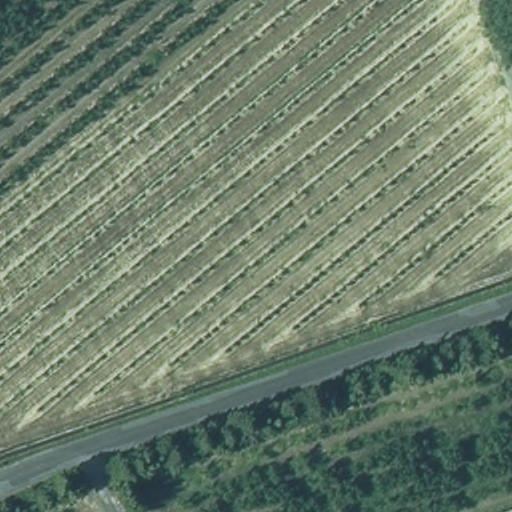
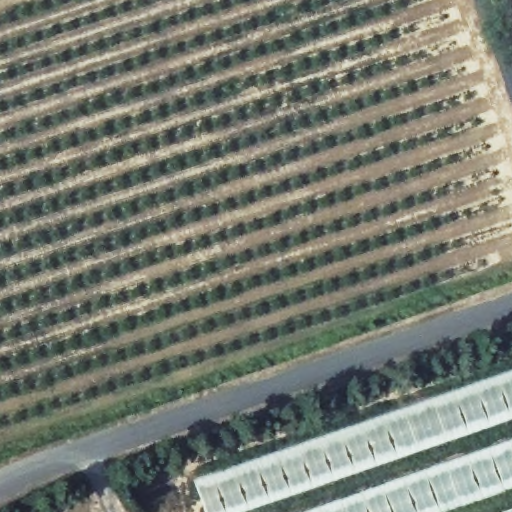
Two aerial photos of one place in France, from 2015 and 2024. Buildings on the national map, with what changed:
new [(205,512),(196,482),(512,372),(512,419),(247,512),(205,512)]
new [(308,512),(512,442),(512,489),(446,512),(308,512)]
unchanged [(512,512),(506,512),(512,510),(512,512)]

